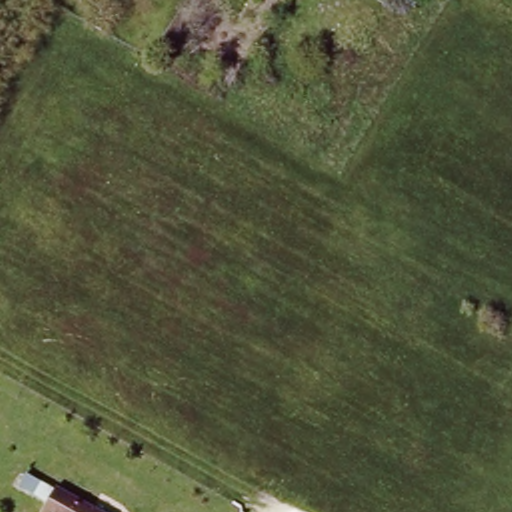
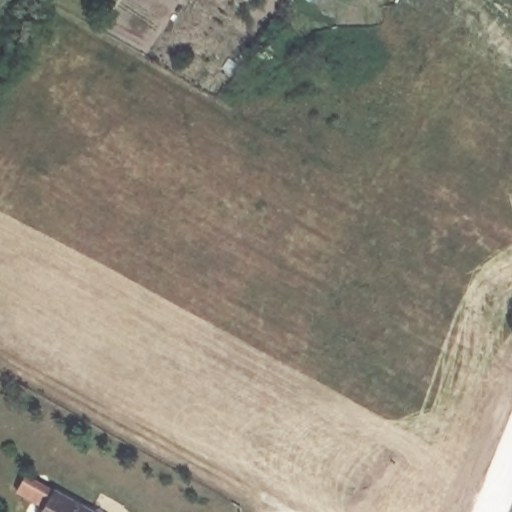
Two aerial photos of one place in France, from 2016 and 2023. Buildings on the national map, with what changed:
unchanged [(422,4),(425,0),(441,0),(434,12),(422,4)]
unchanged [(53,485),(103,512),(38,512),(53,485)]

